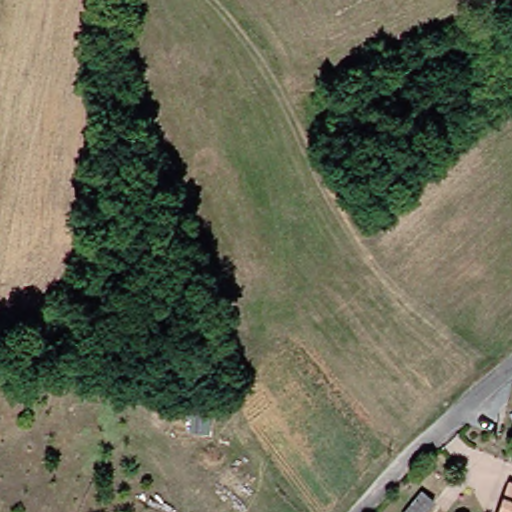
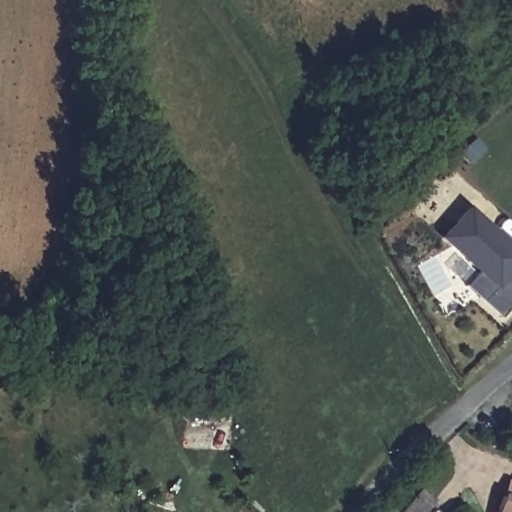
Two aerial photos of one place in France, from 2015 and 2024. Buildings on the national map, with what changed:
new [(505,280),(512,286),(512,305),(501,317),(466,286),(478,272),(439,238),(468,205),(512,244),(512,273),(505,280)]
unchanged [(210,411),(210,430),(191,428),(192,410),(210,411)]
unchanged [(503,483),(512,487),(512,512),(493,512),(498,497),(503,483)]
unchanged [(424,512),(404,512),(421,490),(434,500),(424,512)]

